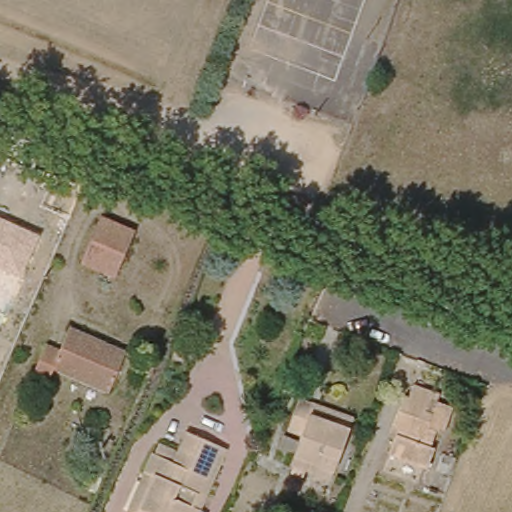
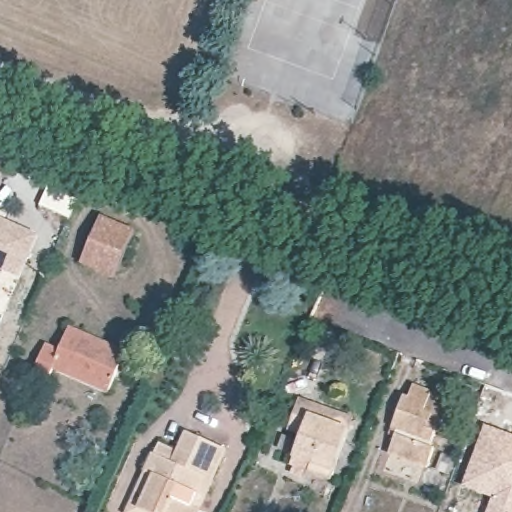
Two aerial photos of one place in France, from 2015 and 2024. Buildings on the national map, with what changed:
new [(58,180),(86,191),(72,224),(43,211),(58,180)]
unchanged [(136,232),(116,275),(83,260),(101,216),(136,232)]
unchanged [(0,269),(0,218),(40,235),(21,278),(0,269)]
unchanged [(129,352),(113,388),(58,365),(53,377),(39,371),(50,345),(64,350),(74,329),(129,352)]
unchanged [(433,388),(425,409),(431,411),(435,400),(453,406),(444,432),(435,429),(430,442),(435,444),(427,465),(390,451),(399,424),(394,423),(404,393),(409,395),(414,381),(433,388)]
unchanged [(314,472),(318,464),(301,458),(310,437),(290,430),(303,398),(320,404),(359,419),(354,431),(336,480),(314,472)]
new [(484,424),(512,434),(512,512),(485,512),(491,498),(461,484),(484,424)]
unchanged [(150,469),(160,449),(178,458),(193,427),(231,445),(223,462),(204,505),(201,512),(140,512),(131,509),(150,469)]
unchanged [(103,512),(92,512),(94,508),(103,512)]

